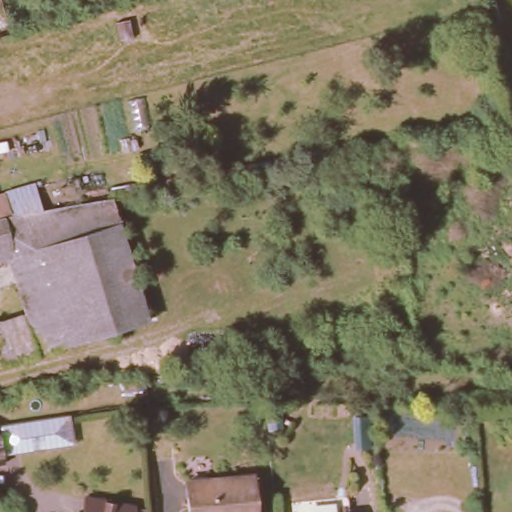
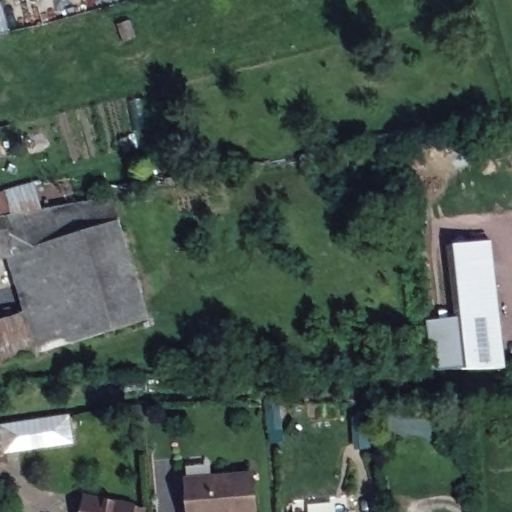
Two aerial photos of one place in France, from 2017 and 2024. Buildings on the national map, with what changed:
unchanged [(0,35),(0,0),(1,0),(10,31),(0,35)]
unchanged [(484,5),(482,0),(496,0),(497,0),(484,5)]
unchanged [(12,214),(112,195),(148,319),(43,352),(14,255),(0,258),(0,192),(5,190),(12,214)]
new [(490,242),(509,369),(466,369),(459,319),(448,249),(490,242)]
unchanged [(37,354),(0,366),(0,319),(23,311),(37,354)]
new [(459,319),(466,369),(437,370),(430,324),(459,319)]
unchanged [(0,467),(0,428),(3,428),(9,466),(0,467)]
unchanged [(185,484),(252,478),(255,512),(187,512),(185,484)]
unchanged [(150,512),(87,512),(90,495),(138,504),(138,510),(150,511),(150,512)]

